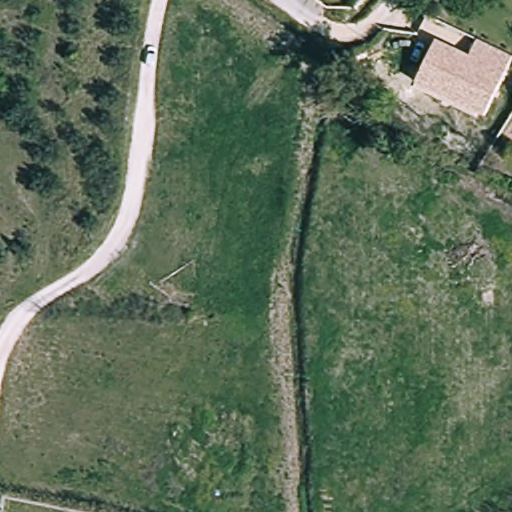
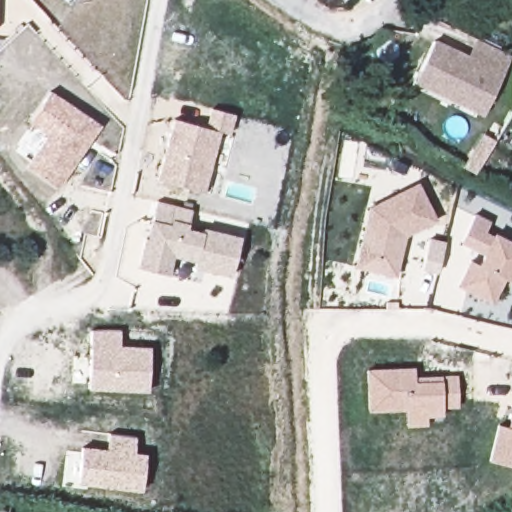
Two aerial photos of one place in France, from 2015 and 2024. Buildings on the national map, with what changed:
unchanged [(512,66),(486,118),(417,84),(435,41),(469,55),(477,41),(512,56),(512,66)]
new [(58,189),(25,166),(46,135),(29,123),(51,91),(101,125),(58,189)]
new [(205,193),(157,180),(173,119),(205,128),(210,107),(236,114),(230,133),(221,132),(205,193)]
new [(369,208),(418,183),(438,222),(406,238),(395,280),(354,269),(369,208)]
new [(169,274),(137,266),(144,238),(147,238),(157,202),(192,210),(188,227),(202,230),(203,227),(241,236),(231,278),(192,268),(193,262),(173,257),(169,274)]
new [(483,256),(459,244),(475,214),(492,223),(485,233),(493,236),(494,234),(512,243),(512,282),(510,285),(504,281),(492,306),(456,287),(469,262),(477,266),(483,256)]
new [(121,346),(151,347),(150,391),(89,389),(91,329),(122,330),(121,346)]
new [(442,409),(443,417),(427,418),(427,427),(407,428),(405,412),(367,413),(366,371),(415,368),(414,378),(441,377),(457,376),(459,409),(442,409)]
new [(512,409),(512,468),(489,462),(497,426),(507,429),(512,409)]
new [(142,491),(77,484),(82,446),(107,449),(109,433),(135,436),(134,452),(146,453),(142,491)]

